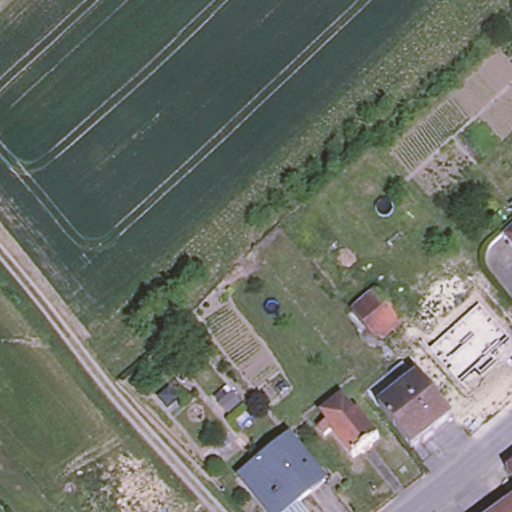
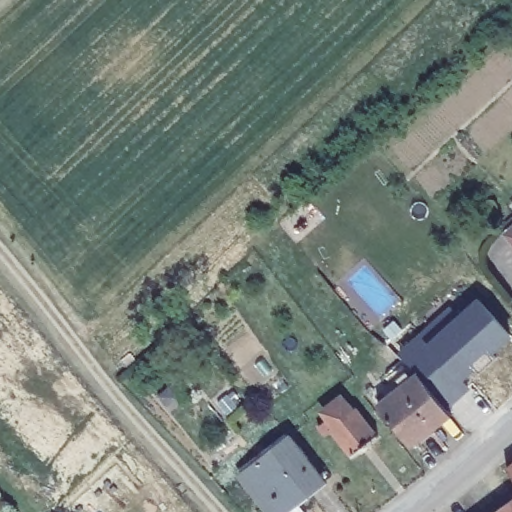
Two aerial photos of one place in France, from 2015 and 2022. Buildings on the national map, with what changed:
unchanged [(509,235),(512,233),(512,239),(509,235)]
demolished [(402,320),(376,340),(353,308),(377,289),(402,320)]
new [(512,335),(512,337),(492,354),(495,357),(480,371),(477,368),(463,379),(470,388),(447,408),(427,383),(425,383),(410,368),(397,353),(420,330),(427,342),(478,297),(512,335)]
demolished [(495,323),(510,311),(512,314),(512,344),(495,323)]
unchanged [(410,368),(425,383),(427,383),(459,423),(440,438),(442,442),(432,450),(430,447),(417,457),(387,414),(375,397),(410,368)]
unchanged [(350,400),(355,407),(358,405),(380,435),(355,455),(334,429),(330,432),(322,422),(330,416),(330,408),(330,404),(332,401),(334,399),(336,398),(338,397),(342,397),(345,397),(347,398),(350,400)]
unchanged [(238,475),(289,440),(323,484),(285,512),(266,512),(238,475)]
unchanged [(509,469),(512,467),(512,473),(509,469)]
unchanged [(512,503),(512,512),(500,512),(512,503)]

